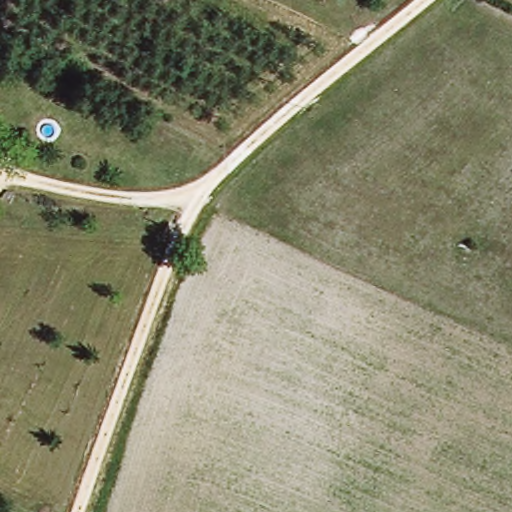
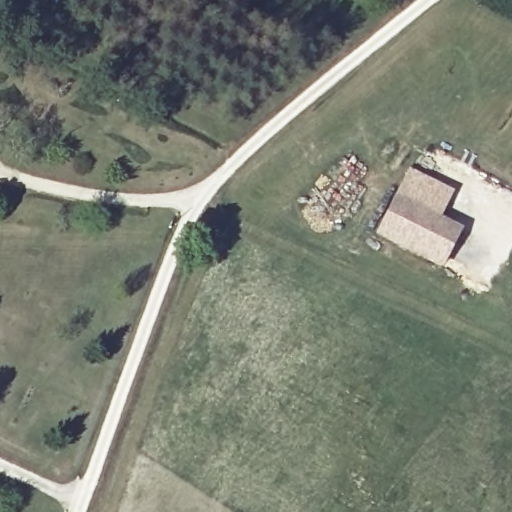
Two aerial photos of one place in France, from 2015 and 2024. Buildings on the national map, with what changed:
new [(462,231),(442,270),(375,235),(409,170),(454,194),(440,218),(462,231)]

